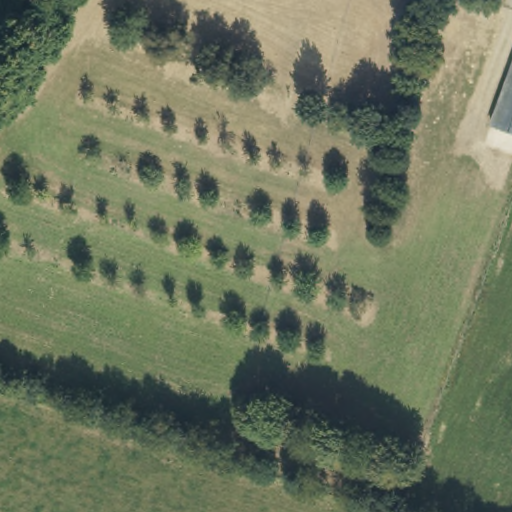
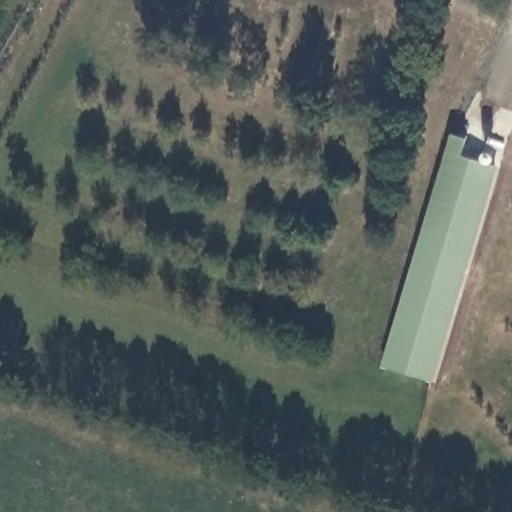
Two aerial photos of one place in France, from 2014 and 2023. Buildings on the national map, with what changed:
demolished [(491,125),(512,66),(512,133),(491,125)]
new [(452,133),(467,138),(462,154),(497,166),(432,382),(381,365),(452,133)]

